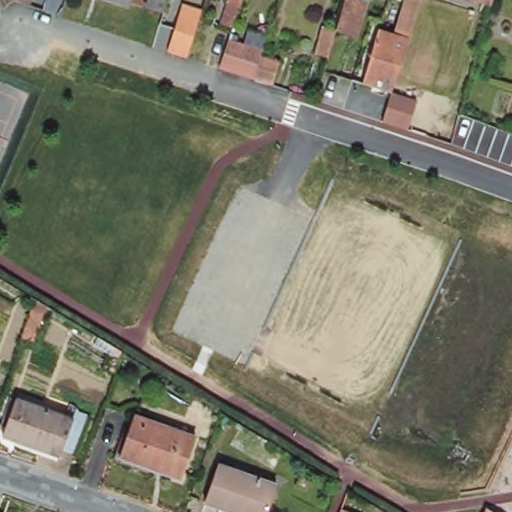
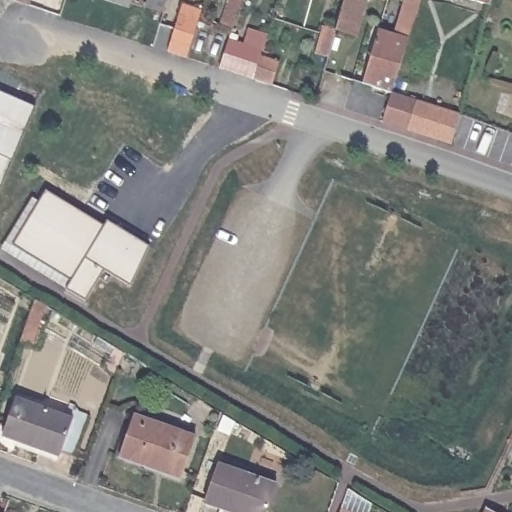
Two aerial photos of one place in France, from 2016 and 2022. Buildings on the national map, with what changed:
unchanged [(10,1),(5,0),(30,0),(28,7),(10,1)]
unchanged [(133,9),(105,0),(143,0),(141,8),(134,6),(133,9)]
unchanged [(146,10),(148,0),(169,0),(165,15),(146,10)]
unchanged [(188,16),(177,14),(182,0),(197,0),(194,11),(188,16)]
unchanged [(242,0),(233,29),(222,25),(231,0),(242,0)]
unchanged [(367,1),(361,20),(356,36),(346,34),(337,31),(342,15),(346,0),(374,0),(373,3),(367,1)]
unchanged [(391,93),(380,88),(365,83),(381,30),(397,34),(408,0),(422,0),(403,64),(394,93),(417,99),(459,116),(454,144),(406,129),(381,120),(391,93)]
unchanged [(493,0),(491,6),(472,0),(493,0)]
unchanged [(166,49),(167,49),(175,20),(177,15),(196,21),(204,24),(202,28),(199,27),(195,26),(186,55),(166,49)]
unchanged [(275,85),(256,79),(220,68),(229,39),(264,50),(262,56),(282,61),(275,85)]
unchanged [(266,42),(270,43),(267,51),(264,50),(266,42)]
demolished [(467,112),(458,109),(459,103),(464,104),(466,100),(470,101),(467,112)]
new [(104,225),(107,220),(147,245),(129,285),(104,270),(85,300),(66,288),(72,279),(13,245),(46,191),(104,225)]
unchanged [(61,454),(5,434),(18,398),(74,417),(61,454)]
unchanged [(179,479),(118,458),(132,417),(193,437),(179,479)]
unchanged [(264,512),(237,512),(238,509),(203,497),(216,461),(274,481),(264,512)]
unchanged [(339,506),(358,512),(337,512),(339,506)]
unchanged [(482,509),(490,512),(481,512),(482,509)]

